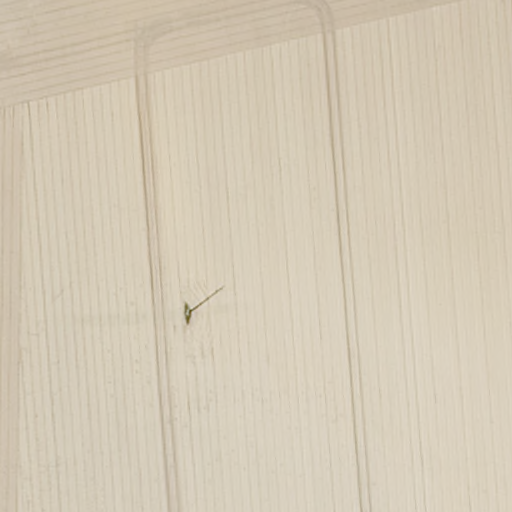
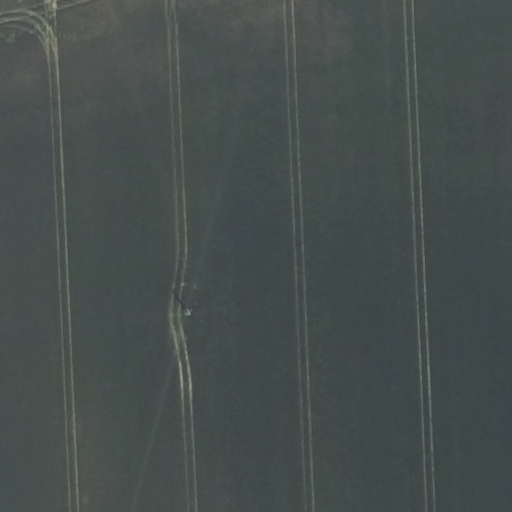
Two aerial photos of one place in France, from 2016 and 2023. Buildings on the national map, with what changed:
[]

